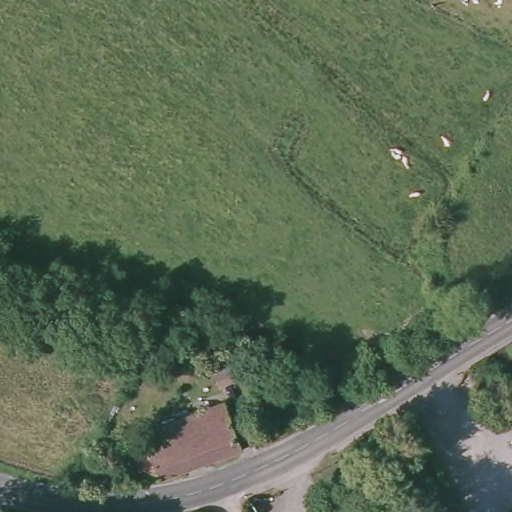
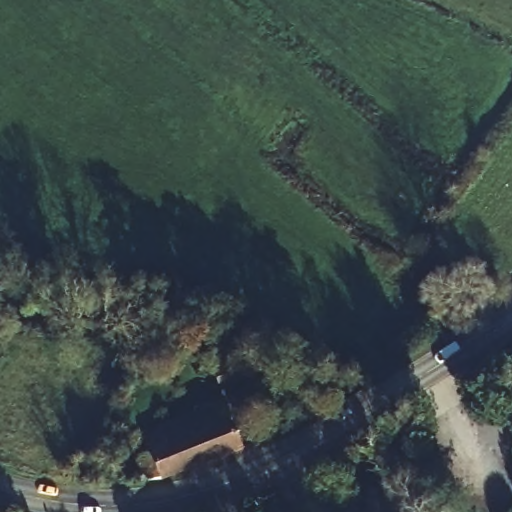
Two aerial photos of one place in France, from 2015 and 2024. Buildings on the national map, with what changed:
unchanged [(232,351),(236,359),(247,382),(229,390),(213,356),(232,351)]
unchanged [(161,472),(136,474),(128,452),(148,445),(144,434),(220,402),(237,442),(161,472)]

